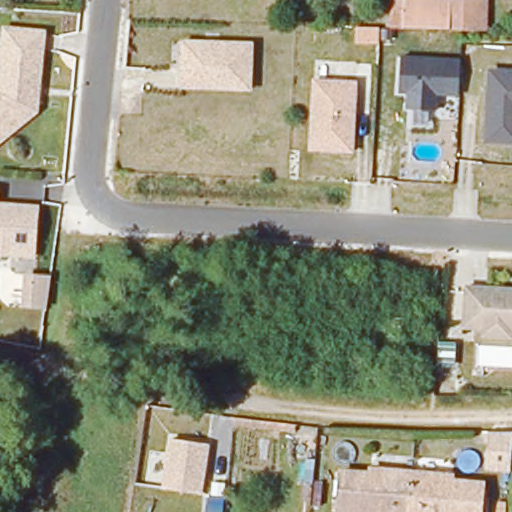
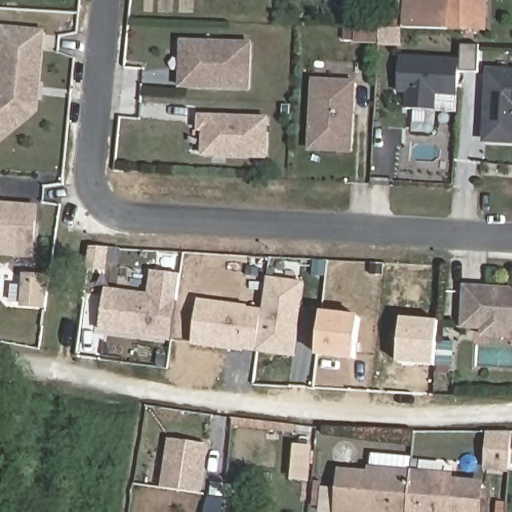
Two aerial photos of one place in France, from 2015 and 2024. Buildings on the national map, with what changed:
unchanged [(482,32),(478,32),(470,31),(458,31),(413,29),(410,29),(397,28),(399,0),(475,0),(485,1),(495,2),(492,32),(482,32)]
unchanged [(36,102),(35,114),(0,141),(0,80),(3,52),(5,32),(42,36),(40,56),(38,85),(36,102)]
unchanged [(181,90),(183,40),(255,43),(254,92),(181,90)]
unchanged [(463,98),(438,98),(436,113),(405,112),(405,94),(398,94),(400,56),(462,58),(463,98)]
unchanged [(485,148),(488,68),(512,69),(512,148),(485,148)]
unchanged [(355,155),(309,153),(313,78),(358,81),(355,155)]
new [(202,157),(203,135),(198,135),(199,114),(270,117),(269,159),(202,157)]
unchanged [(16,252),(0,250),(0,213),(0,207),(35,210),(33,243),(32,253),(16,252)]
unchanged [(48,310),(21,308),(24,273),(54,275),(48,310)]
new [(106,293),(123,296),(152,300),(156,274),(181,278),(171,343),(100,332),(105,304),(106,293)]
new [(191,349),(196,301),(261,309),(266,277),(306,284),(296,361),(191,349)]
unchanged [(485,338),(485,330),(464,330),(465,290),(507,291),(506,295),(512,295),(512,331),(510,331),(511,338),(485,338)]
new [(317,355),(322,313),(361,318),(357,359),(317,355)]
new [(403,320),(441,323),(438,354),(455,355),(454,368),(400,363),(403,320)]
new [(491,433),(512,433),(512,449),(510,471),(487,471),(491,433)]
unchanged [(204,496),(161,490),(169,438),(212,445),(204,496)]
new [(294,445),(313,447),(310,482),(290,480),(294,445)]
unchanged [(337,512),(340,471),(370,474),(370,469),(410,472),(407,512),(337,512)]
unchanged [(451,481),(482,484),(480,512),(407,512),(410,472),(452,476),(451,481)]

